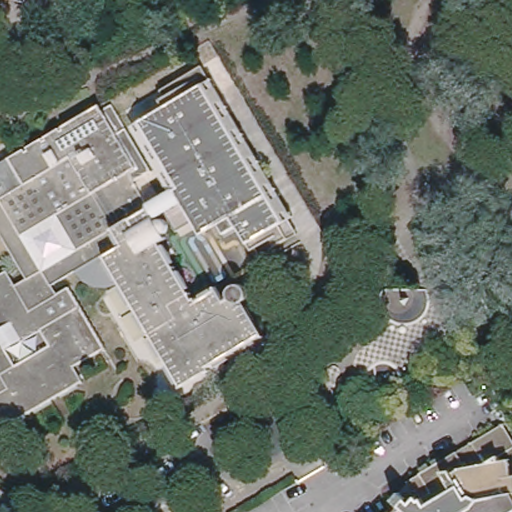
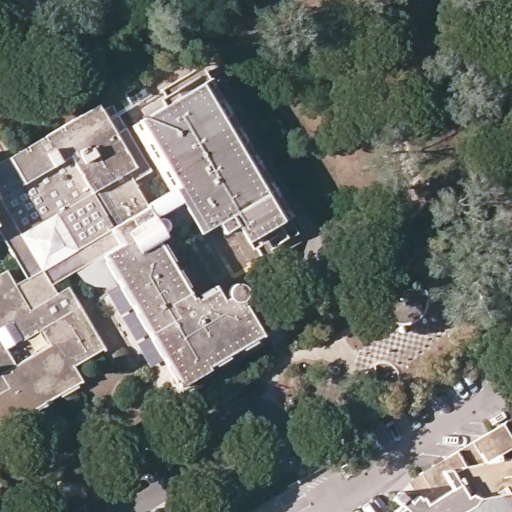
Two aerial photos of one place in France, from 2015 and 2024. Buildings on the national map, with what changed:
unchanged [(26,0),(25,2),(17,0),(26,0)]
unchanged [(123,278),(108,253),(125,244),(115,225),(152,204),(171,192),(155,164),(132,124),(163,105),(158,98),(166,93),(161,85),(206,60),(303,231),(259,255),(251,240),(241,223),(227,230),(222,221),(204,230),(187,202),(155,221),(196,297),(218,284),(226,297),(241,288),(268,335),(185,383),(123,278)]
unchanged [(6,426),(0,415),(0,274),(10,268),(18,280),(28,274),(1,224),(0,222),(0,158),(101,102),(105,106),(115,100),(132,124),(155,164),(135,176),(152,204),(115,225),(125,244),(108,253),(123,278),(95,293),(81,268),(55,281),(60,290),(73,284),(109,348),(77,364),(86,381),(6,426)]
unchanged [(0,225),(0,222),(1,224),(0,225)]
unchanged [(420,498),(421,501),(430,496),(417,474),(437,462),(500,426),(512,444),(512,447),(494,459),(495,462),(504,459),(507,476),(512,475),(512,512),(396,512),(420,498)]

